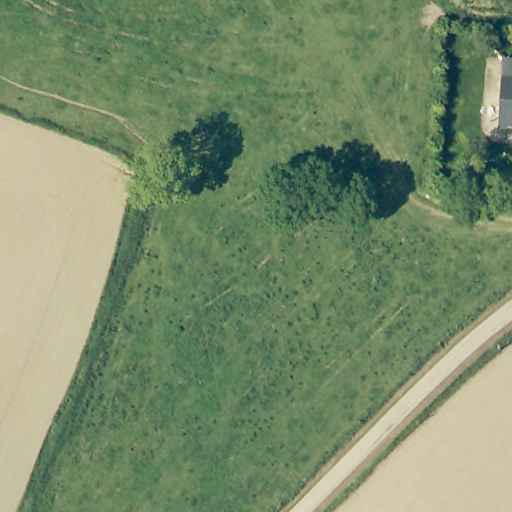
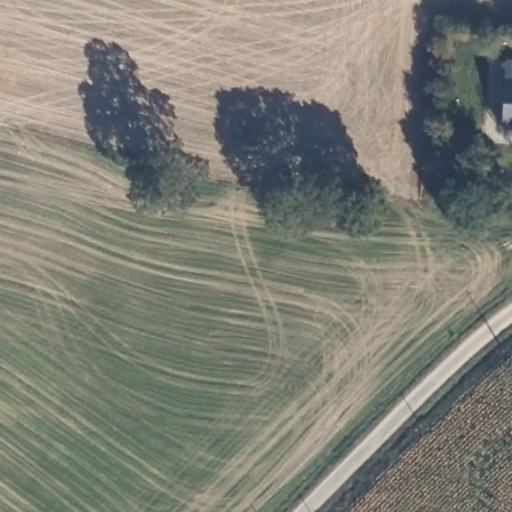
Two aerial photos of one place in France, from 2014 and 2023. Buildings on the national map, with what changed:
unchanged [(509,74),(510,62),(512,62),(512,130),(507,129),(509,74)]

